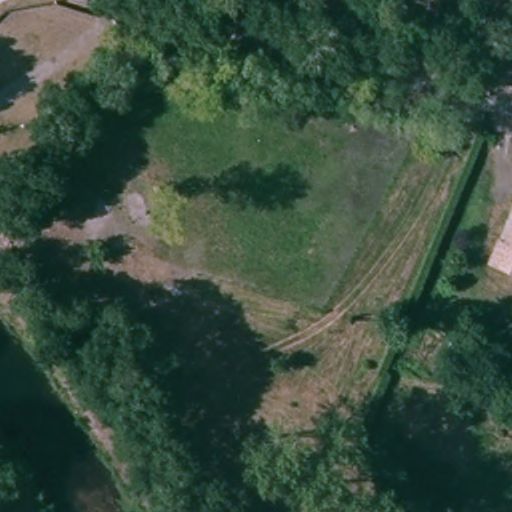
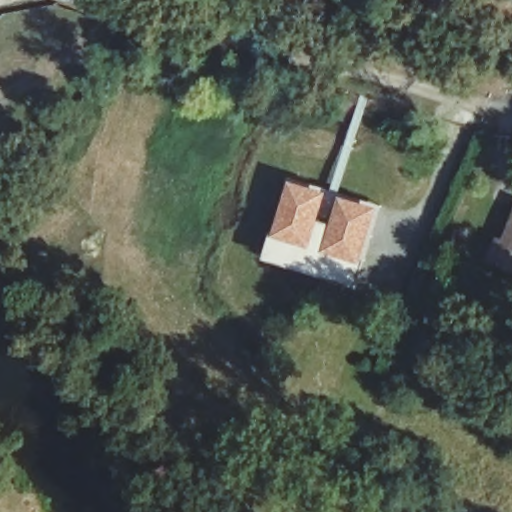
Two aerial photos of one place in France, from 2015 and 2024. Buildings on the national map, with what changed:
new [(328,191),(320,218),(333,222),(341,195),(378,207),(363,257),(366,258),(356,287),(263,258),(272,229),(275,230),(291,179),(328,191)]
unchanged [(486,267),(493,239),(502,237),(511,215),(512,215),(512,276),(486,267)]

